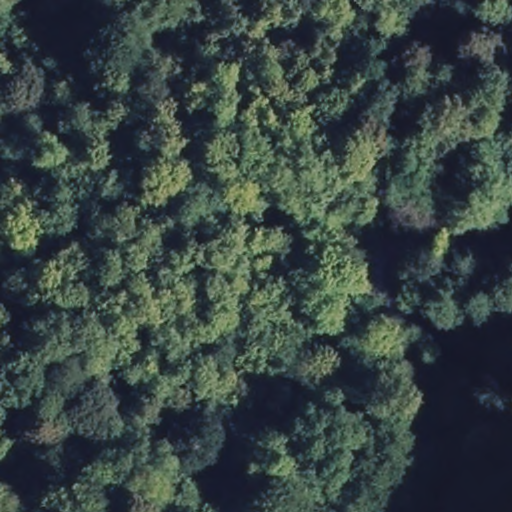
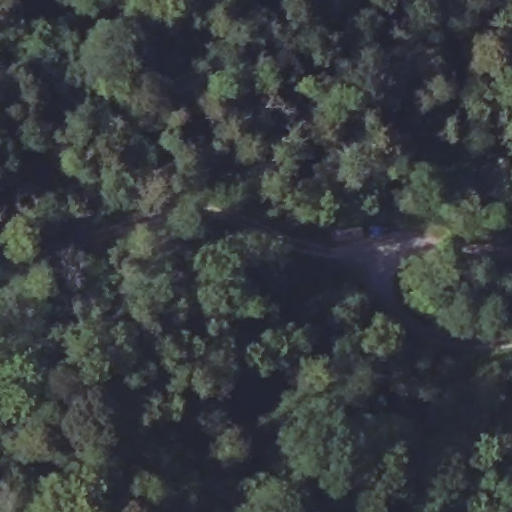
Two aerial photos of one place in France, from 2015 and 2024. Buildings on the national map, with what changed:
[]

